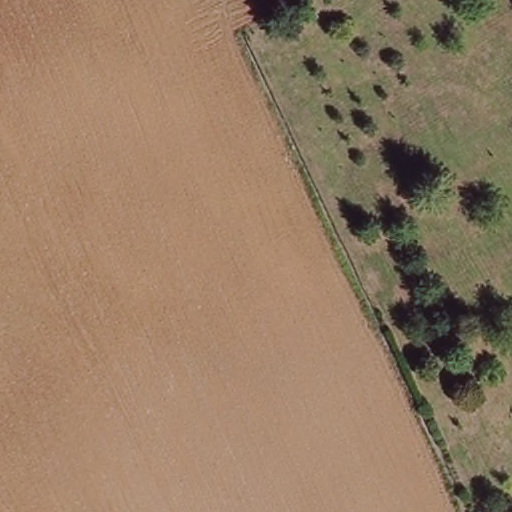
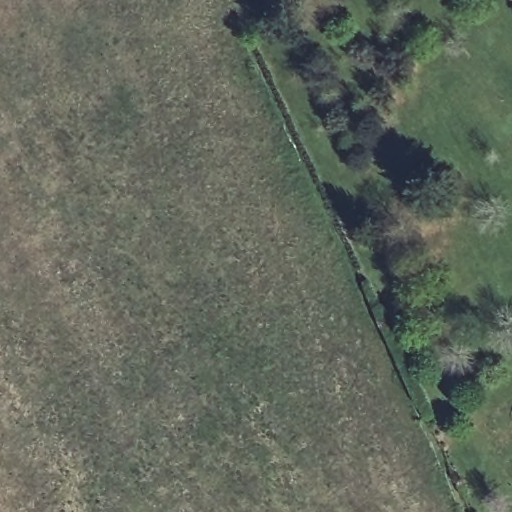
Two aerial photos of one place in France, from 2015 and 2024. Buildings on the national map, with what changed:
[]

